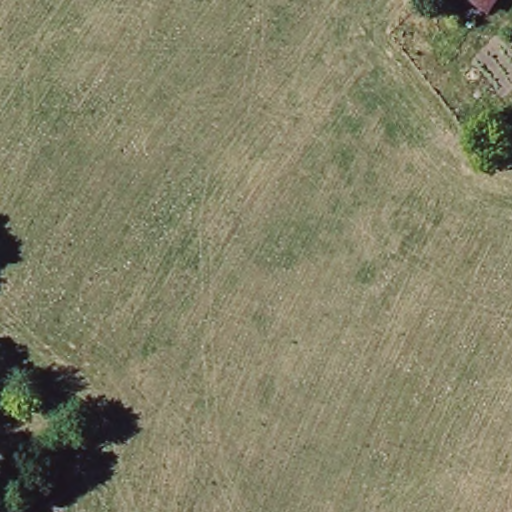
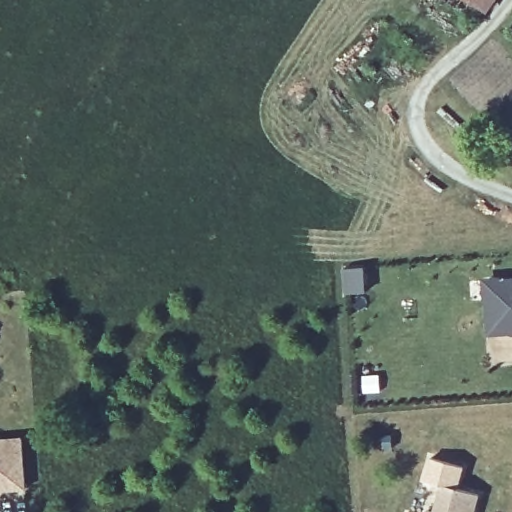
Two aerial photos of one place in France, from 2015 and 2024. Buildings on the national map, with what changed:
unchanged [(481,23),(448,0),(498,0),(481,23)]
new [(512,275),(512,333),(488,334),(483,277),(512,275)]
new [(22,438),(25,487),(0,489),(0,439),(22,438)]
new [(477,496),(473,512),(435,512),(442,486),(477,496)]

